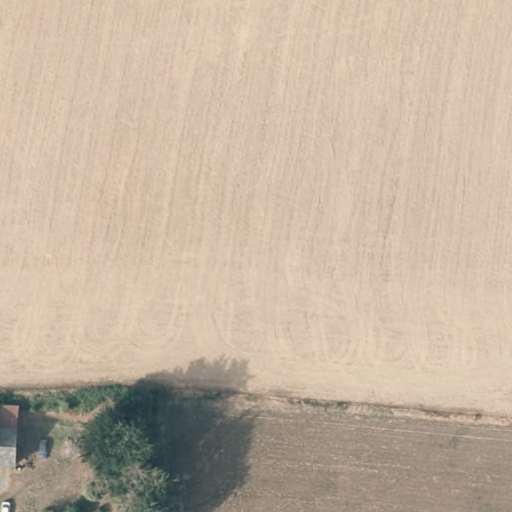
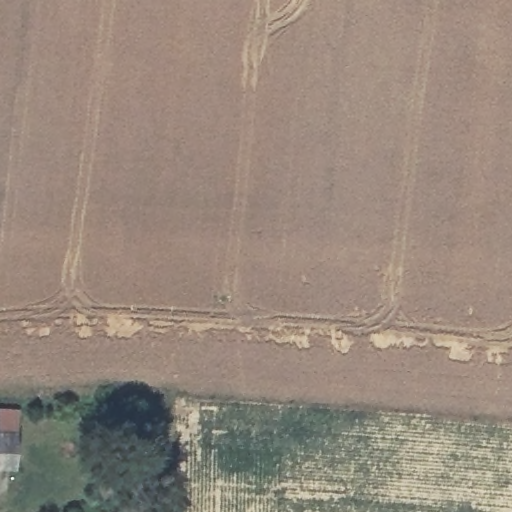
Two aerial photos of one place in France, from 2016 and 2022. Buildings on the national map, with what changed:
unchanged [(143,402),(151,427),(127,440),(113,416),(143,402)]
unchanged [(0,414),(0,403),(1,403),(0,414)]
unchanged [(0,465),(0,414),(1,403),(20,403),(18,465),(0,465)]

